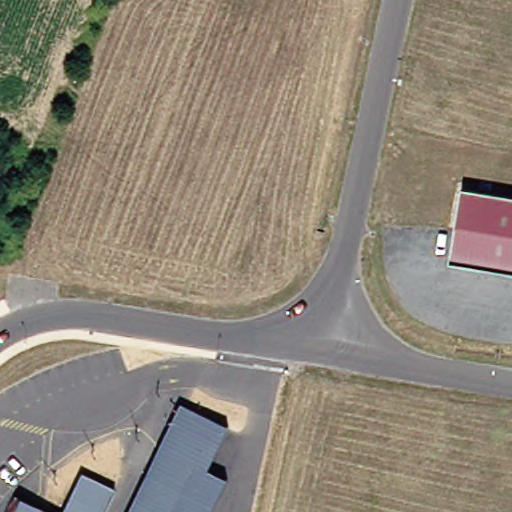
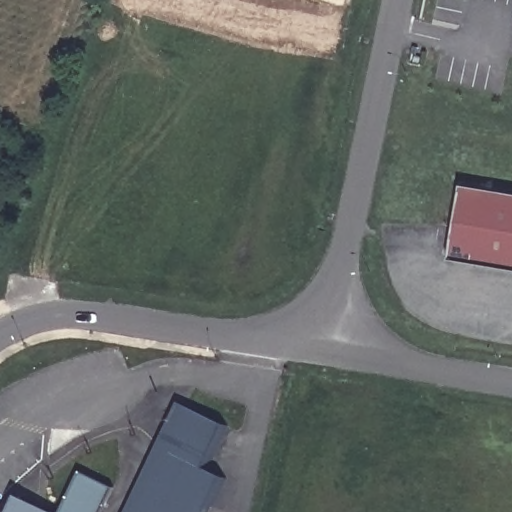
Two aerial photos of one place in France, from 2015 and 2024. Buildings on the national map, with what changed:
unchanged [(512,272),(450,261),(463,187),(512,195),(512,272)]
unchanged [(207,470),(223,477),(206,512),(128,512),(179,405),(228,423),(207,470)]
unchanged [(62,512),(80,473),(112,486),(99,512),(62,512)]
unchanged [(47,512),(9,512),(16,497),(47,512)]

